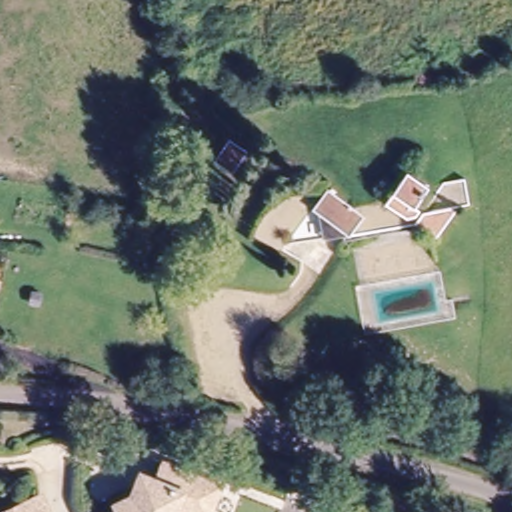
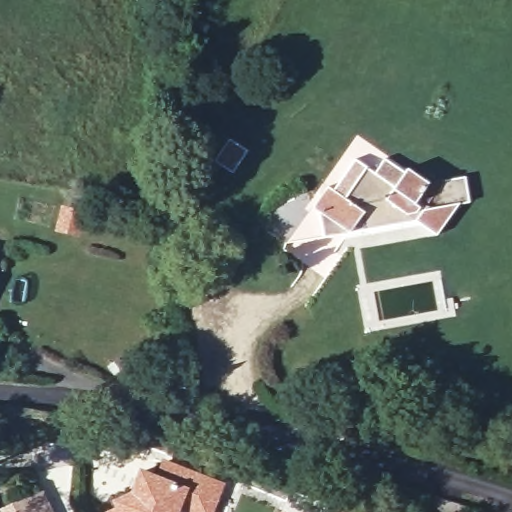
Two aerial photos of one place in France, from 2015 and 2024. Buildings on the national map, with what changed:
unchanged [(230,137),(249,146),(238,171),(219,162),(230,137)]
new [(354,160),(366,168),(374,174),(384,158),(401,169),(378,200),(348,206),(330,193),(354,160)]
demolished [(218,165),(237,174),(226,199),(206,190),(218,165)]
unchanged [(321,187),(348,206),(378,200),(401,169),(420,183),(459,178),(463,200),(456,201),(432,234),(408,221),(283,240),(321,187)]
unchanged [(203,512),(172,504),(170,512),(107,512),(112,510),(109,503),(128,496),(133,473),(153,478),(158,460),(213,476),(203,512)]
unchanged [(0,512),(0,508),(44,489),(54,512),(0,512)]
unchanged [(365,512),(336,512),(339,503),(365,512)]
unchanged [(170,512),(172,504),(203,512),(205,512),(170,512)]

